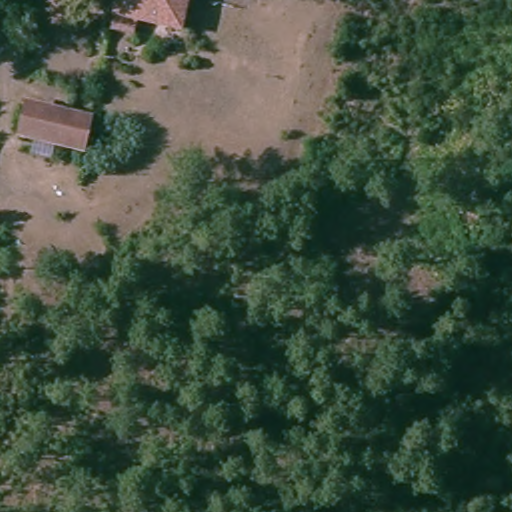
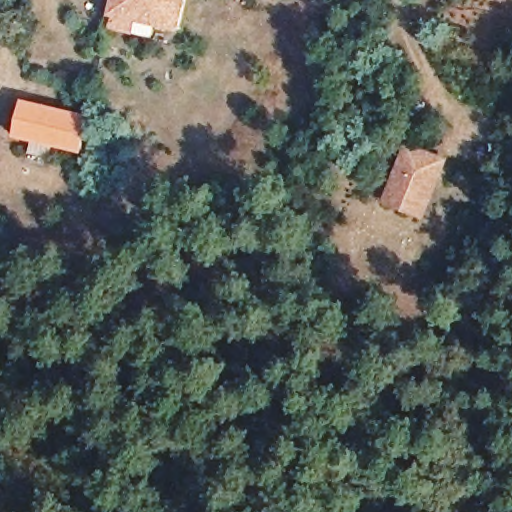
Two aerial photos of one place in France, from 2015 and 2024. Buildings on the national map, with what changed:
unchanged [(110,27),(113,15),(116,0),(186,0),(179,30),(135,20),(132,32),(110,27)]
unchanged [(14,141),(21,108),(85,123),(87,124),(80,157),(14,141)]
new [(449,160),(425,220),(382,204),(406,142),(449,160)]

